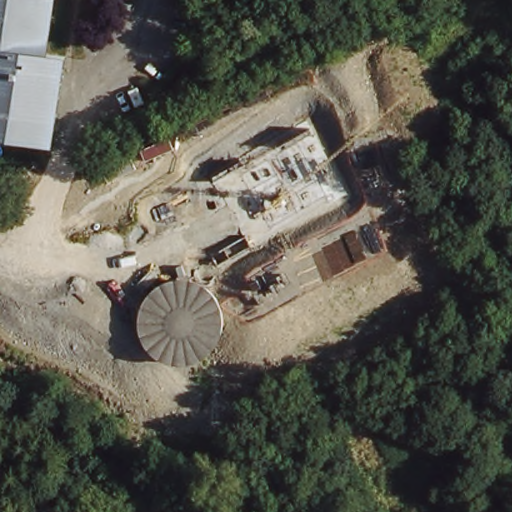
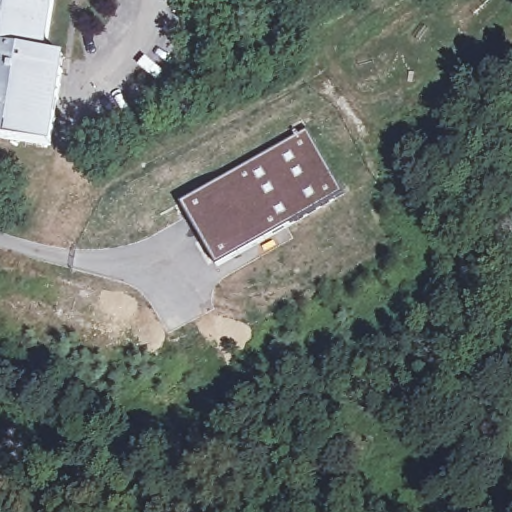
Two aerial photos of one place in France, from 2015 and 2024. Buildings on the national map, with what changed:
unchanged [(50,19),(48,32),(45,48),(57,50),(65,51),(62,66),(50,140),(0,132),(0,0),(54,0),(50,19)]
new [(306,129),(343,194),(215,267),(178,202),(306,129)]
demolished [(75,176),(79,189),(66,194),(62,181),(75,176)]

